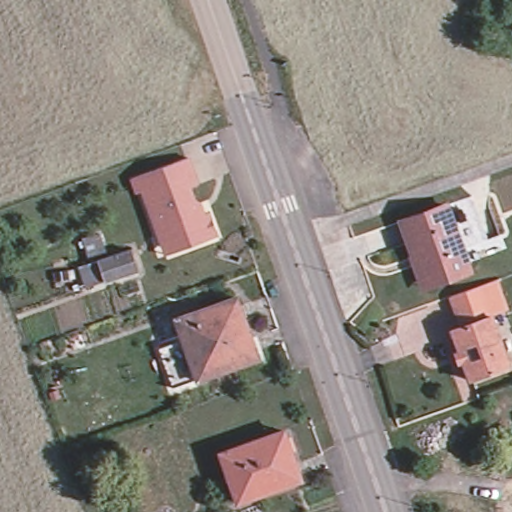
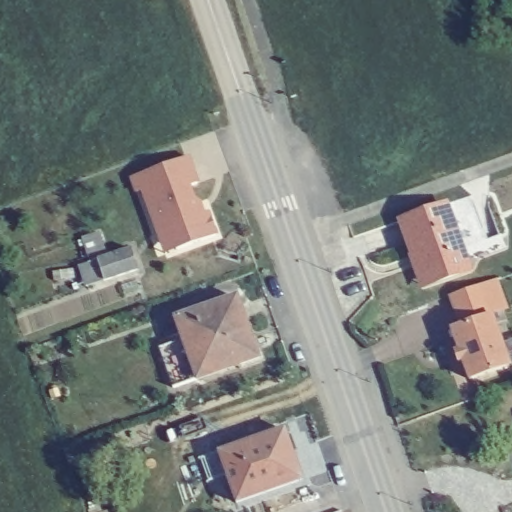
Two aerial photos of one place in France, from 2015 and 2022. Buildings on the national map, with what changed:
unchanged [(161,233),(145,190),(140,192),(134,177),(190,156),(200,183),(192,186),(198,204),(202,203),(206,214),(211,212),(220,236),(180,250),(168,254),(161,233)]
unchanged [(418,292),(398,219),(447,202),(469,272),(418,292)]
unchanged [(82,265),(100,259),(133,249),(140,270),(107,281),(89,286),(82,265)]
unchanged [(458,358),(452,337),(461,334),(450,305),(474,296),(479,294),(497,288),(508,317),(490,324),(506,373),(468,386),(462,369),(457,371),(453,360),(458,358)]
unchanged [(235,297),(255,357),(195,380),(182,339),(175,319),(235,297)]
unchanged [(172,388),(158,347),(182,339),(195,380),(172,388)]
unchanged [(287,431),(305,481),(242,503),(224,453),(287,431)]

